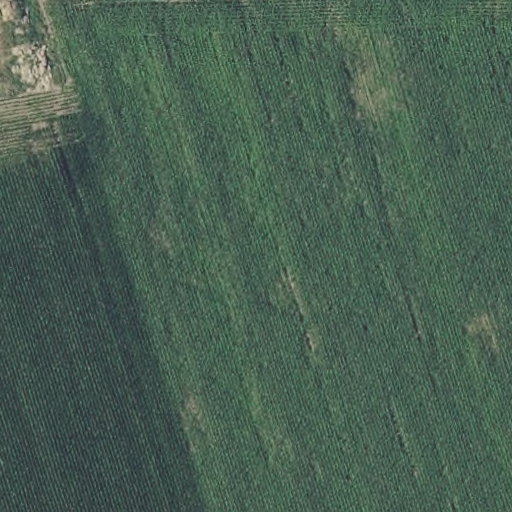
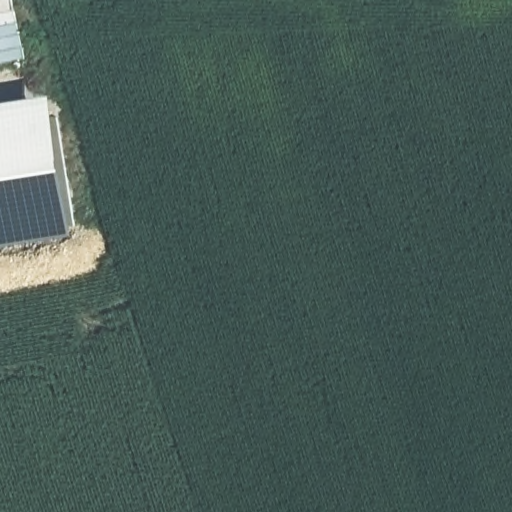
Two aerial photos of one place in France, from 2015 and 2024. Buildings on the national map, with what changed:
new [(15,0),(27,59),(0,64),(0,0),(15,0)]
new [(55,95),(75,235),(0,247),(0,103),(55,95)]

